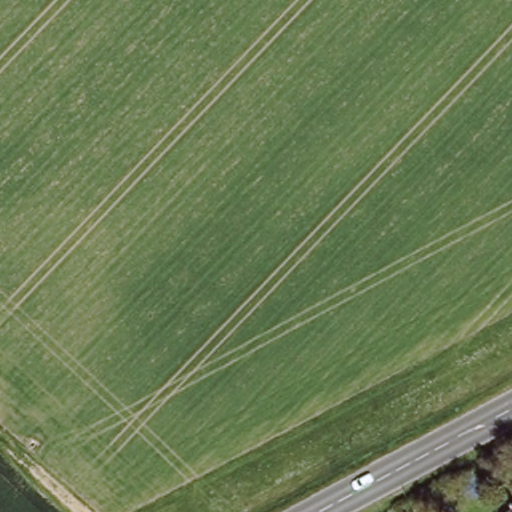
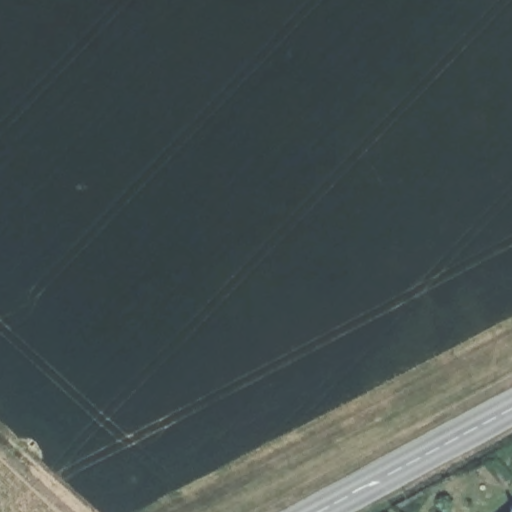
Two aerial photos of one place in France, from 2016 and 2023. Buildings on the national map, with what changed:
unchanged [(512,510),(512,512),(510,512),(512,510)]

